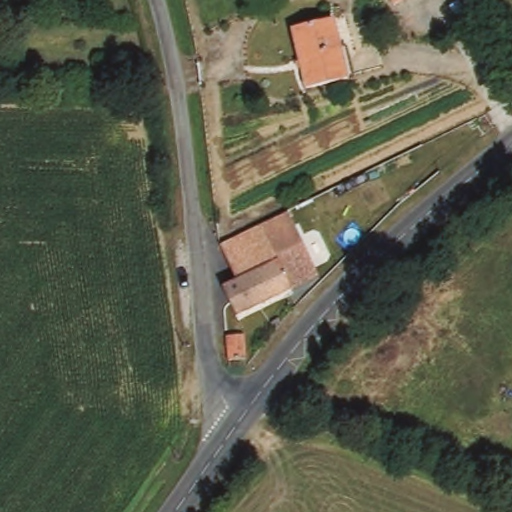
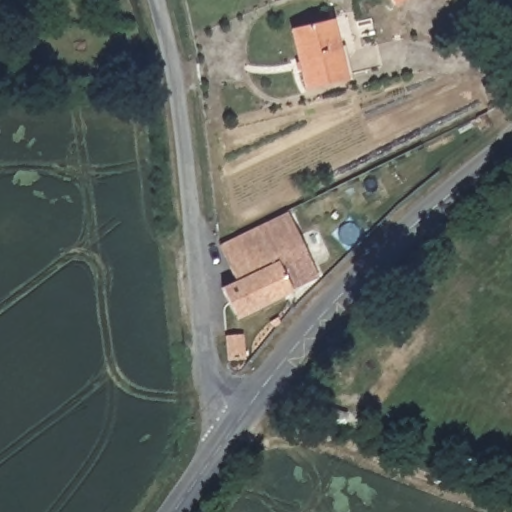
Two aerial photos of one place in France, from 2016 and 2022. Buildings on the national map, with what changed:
unchanged [(388,0),(395,0),(390,3),(388,0)]
unchanged [(326,22),(340,84),(297,94),(283,32),(326,22)]
unchanged [(287,214),(292,225),(305,258),(313,281),(315,284),(229,325),(217,294),(227,287),(209,247),(287,214)]
unchanged [(250,335),(253,361),(237,363),(234,336),(250,335)]

